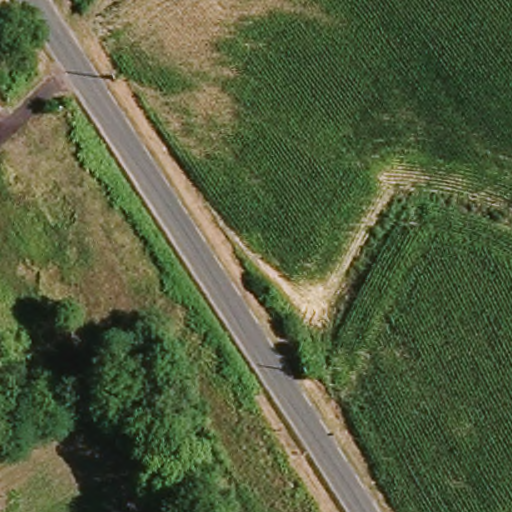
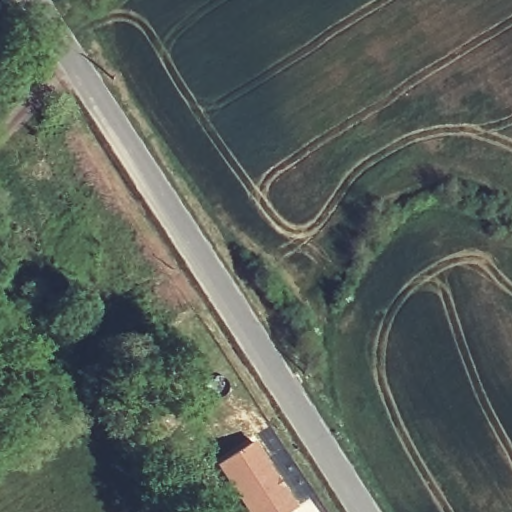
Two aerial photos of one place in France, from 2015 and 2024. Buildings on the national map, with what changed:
new [(298,503),(285,512),(245,512),(214,465),(256,438),(298,503)]

